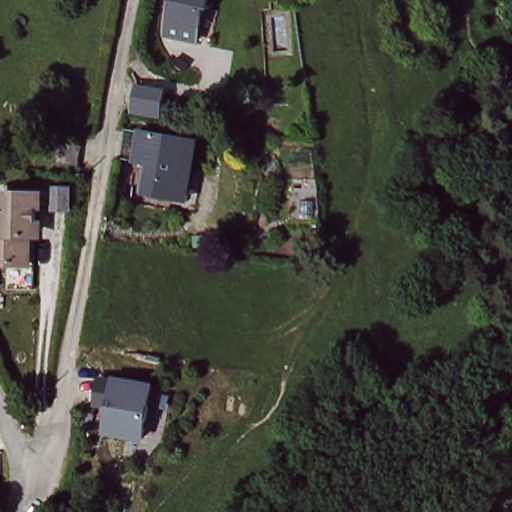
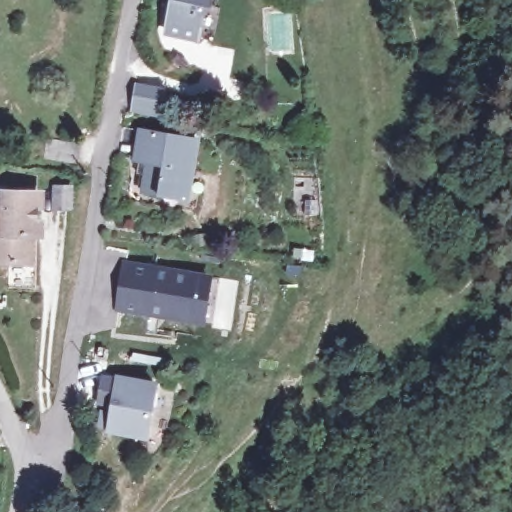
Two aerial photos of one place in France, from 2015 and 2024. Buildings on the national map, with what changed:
unchanged [(210,43),(173,37),(180,0),(218,0),(210,43)]
unchanged [(135,115),(130,115),(132,107),(136,87),(165,92),(161,112),(160,120),(135,115)]
unchanged [(47,129),(82,135),(79,154),(44,149),(47,129)]
unchanged [(201,143),(195,171),(190,170),(182,201),(143,194),(150,167),(130,163),(135,131),(201,143)]
unchanged [(0,271),(2,258),(0,258),(0,227),(2,227),(10,187),(42,194),(30,262),(26,287),(0,281),(0,271)]
new [(212,275),(205,327),(151,317),(114,312),(121,262),(158,266),(212,275)]
unchanged [(115,377),(152,385),(141,439),(105,432),(115,377)]

